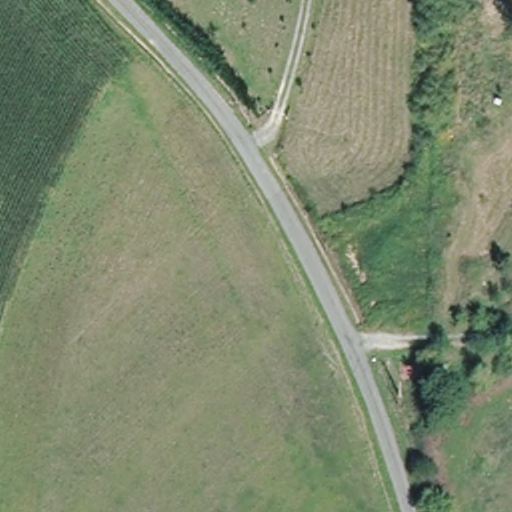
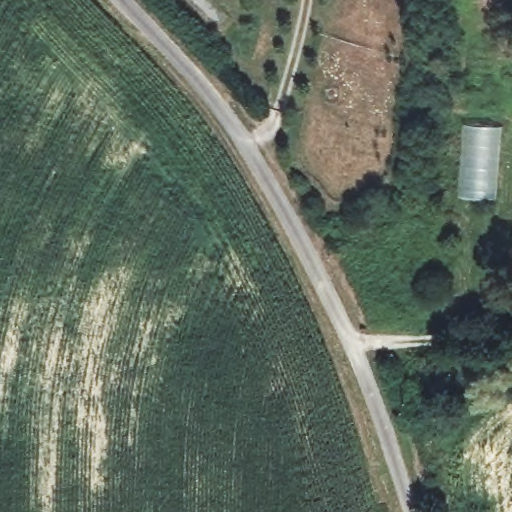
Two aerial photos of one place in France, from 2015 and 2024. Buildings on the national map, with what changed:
new [(461,125),(501,126),(496,199),(456,197),(461,125)]

